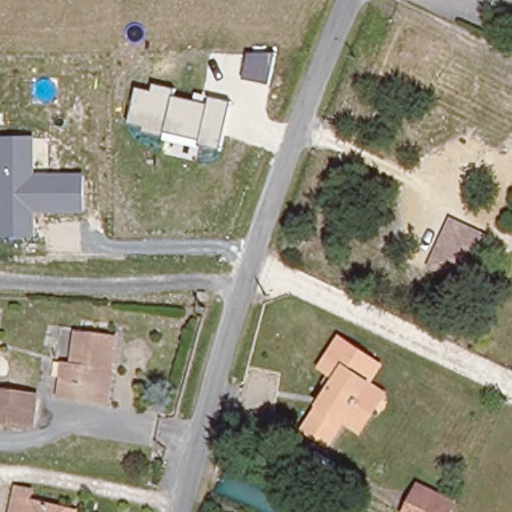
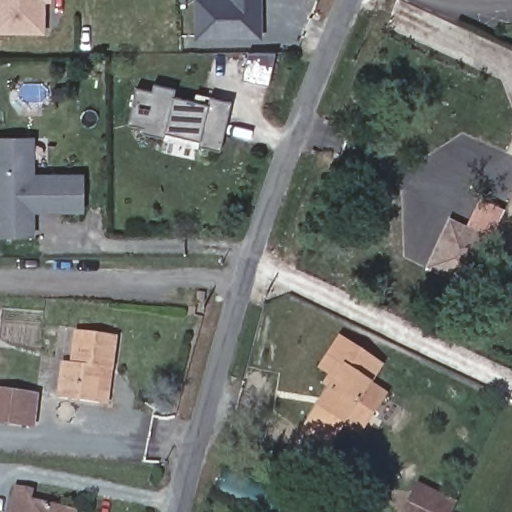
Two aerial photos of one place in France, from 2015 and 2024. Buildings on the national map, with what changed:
new [(0,34),(0,0),(51,0),(51,3),(45,3),(46,35),(0,34)]
new [(261,0),(261,40),(194,41),(197,0),(261,0)]
unchanged [(269,86),(242,80),(247,54),(274,54),(269,86)]
unchanged [(230,102),(220,149),(199,146),(198,149),(163,142),(164,138),(142,134),(143,127),(128,125),(136,87),(152,92),(154,85),(174,90),(172,97),(193,102),(194,94),(208,97),(230,102)]
unchanged [(84,174),(84,213),(35,214),(35,237),(0,237),(0,137),(34,137),(35,173),(84,174)]
unchanged [(493,239),(472,283),(434,266),(455,222),(493,239)]
unchanged [(99,402),(61,397),(66,363),(74,363),(79,330),(119,336),(114,367),(107,403),(99,402)]
unchanged [(349,417),(334,442),(312,430),(337,388),(331,384),(336,375),(325,368),(342,338),(384,363),(373,382),(389,392),(377,412),(367,428),(349,417)]
unchanged [(42,396),(39,423),(0,419),(0,391),(42,396)]
unchanged [(420,483),(457,502),(454,507),(452,512),(404,512),(416,490),(420,483)]
unchanged [(12,489),(28,492),(26,503),(69,511),(75,512),(8,512),(12,489)]

